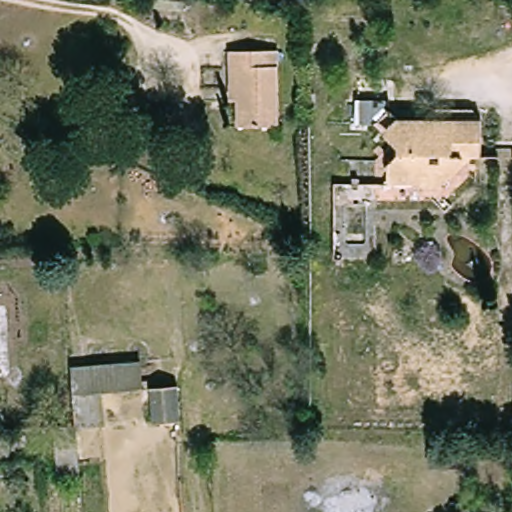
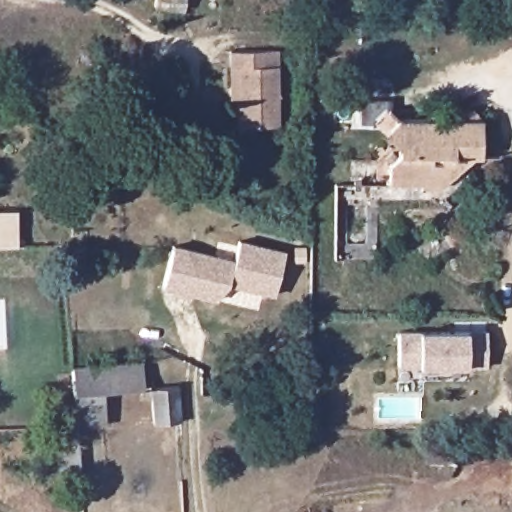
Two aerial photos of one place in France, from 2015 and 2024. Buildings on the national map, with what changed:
unchanged [(182,11),(153,7),(154,0),(183,0),(182,11)]
unchanged [(276,54),(277,131),(238,130),(237,104),(229,105),(228,74),(227,53),(276,54)]
unchanged [(430,190),(395,188),(395,168),(404,160),(400,156),(393,148),(379,134),(393,118),(404,127),(427,127),(438,119),(447,129),(454,123),(481,123),(487,131),(487,165),(472,164),(459,161),(457,179),(447,179),(447,190),(430,190)]
new [(0,214),(15,213),(16,246),(0,246),(0,214)]
new [(162,289),(173,248),(234,265),(240,246),(285,258),(274,300),(228,288),(215,303),(194,297),(182,294),(162,289)]
new [(485,367),(397,367),(397,331),(485,331),(485,367)]
unchanged [(73,366),(144,361),(147,392),(107,395),(109,429),(77,431),(73,366)]
unchanged [(177,389),(178,425),(151,426),(150,391),(177,389)]
demolished [(256,404),(255,433),(219,430),(220,401),(256,404)]
unchanged [(73,429),(78,476),(57,478),(52,429),(73,429)]

